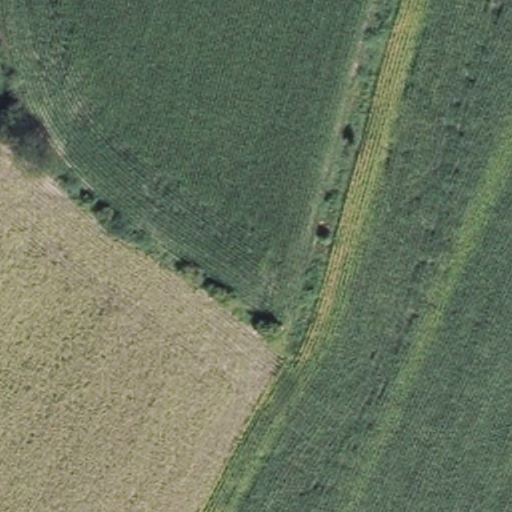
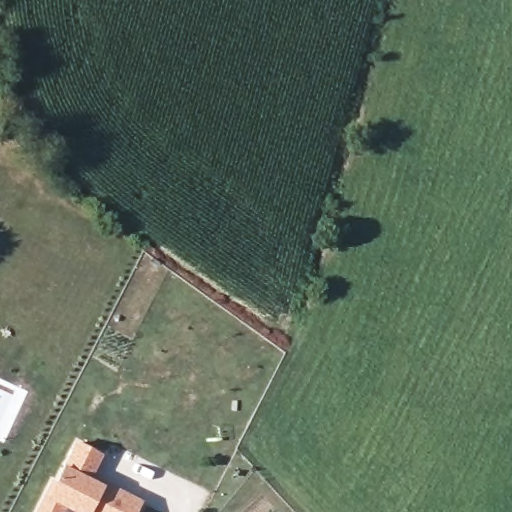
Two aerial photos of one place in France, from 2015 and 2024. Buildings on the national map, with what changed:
new [(38,509),(46,493),(56,474),(60,476),(81,436),(106,449),(94,470),(107,477),(144,496),(136,512),(92,512),(68,500),(66,504),(62,512),(44,512),(38,509)]

